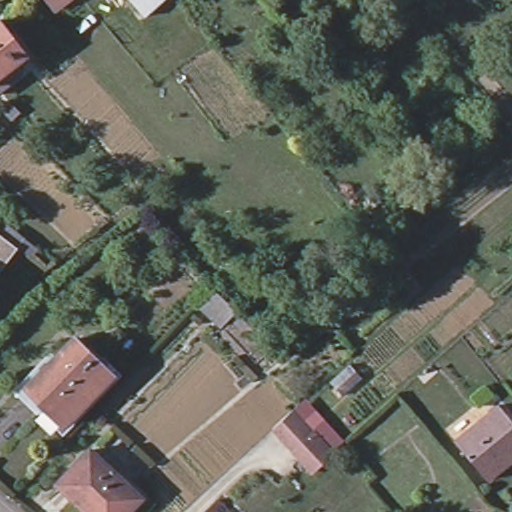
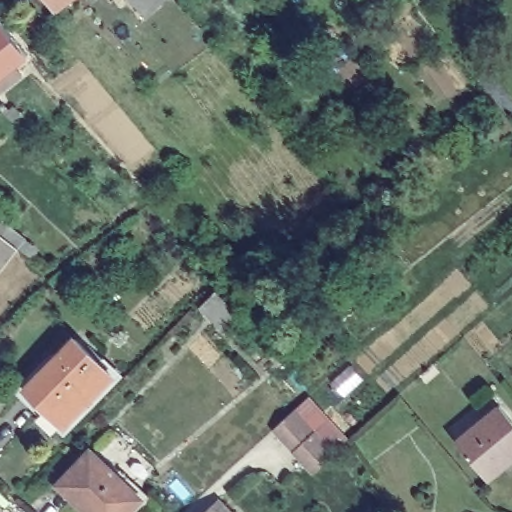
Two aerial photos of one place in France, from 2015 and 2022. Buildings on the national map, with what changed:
unchanged [(49,0),(62,0),(54,6),(49,0)]
unchanged [(136,0),(160,0),(147,12),(136,0)]
unchanged [(0,92),(0,20),(27,56),(15,65),(22,75),(0,92)]
unchanged [(21,113),(14,121),(5,113),(14,105),(21,113)]
unchanged [(2,235),(8,226),(25,240),(19,248),(0,273),(0,234),(2,235)]
unchanged [(221,327),(200,306),(216,290),(237,311),(221,327)]
unchanged [(75,339),(112,375),(64,426),(26,389),(75,339)]
unchanged [(455,442),(500,405),(512,421),(512,461),(488,480),(455,442)]
unchanged [(297,407),(314,430),(325,418),(348,445),(312,478),(272,427),(297,407)]
unchanged [(91,450),(141,498),(128,512),(86,512),(57,484),(91,450)]

